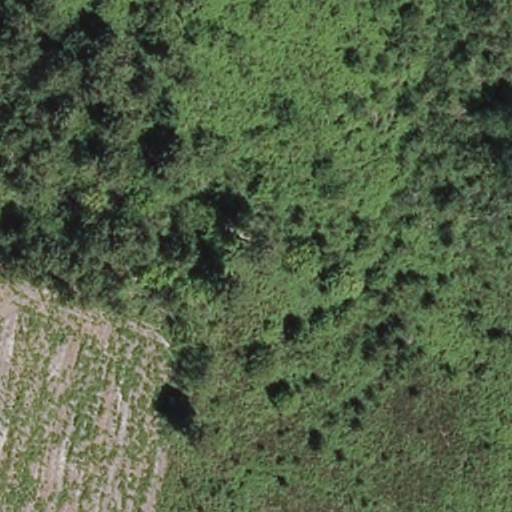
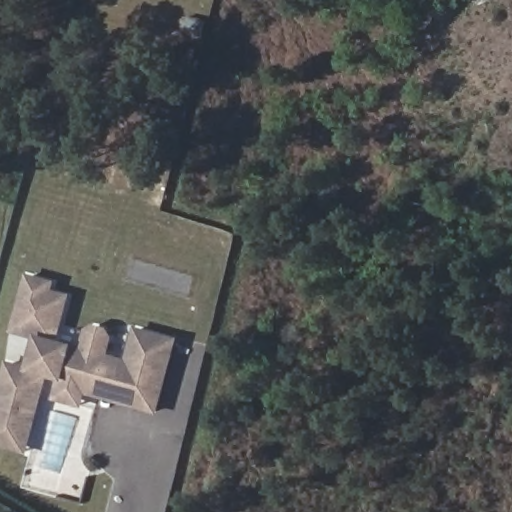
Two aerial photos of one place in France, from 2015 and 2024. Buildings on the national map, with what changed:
new [(52,400),(56,380),(47,378),(28,455),(0,448),(0,387),(7,361),(28,365),(35,341),(11,334),(27,273),(57,282),(55,290),(72,295),(60,341),(75,344),(81,346),(85,330),(94,325),(109,329),(113,339),(110,354),(126,359),(135,327),(178,338),(157,414),(87,395),(84,409),(52,400)]

